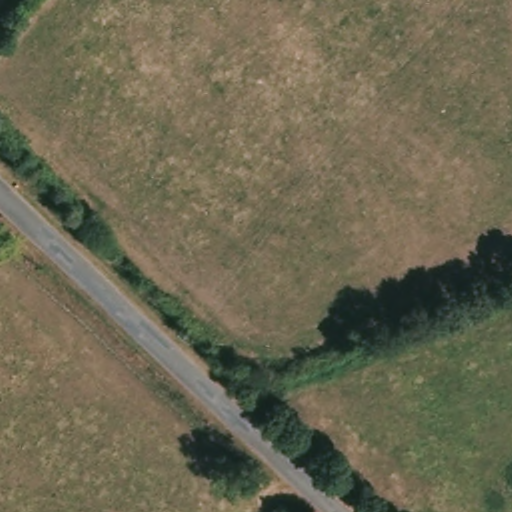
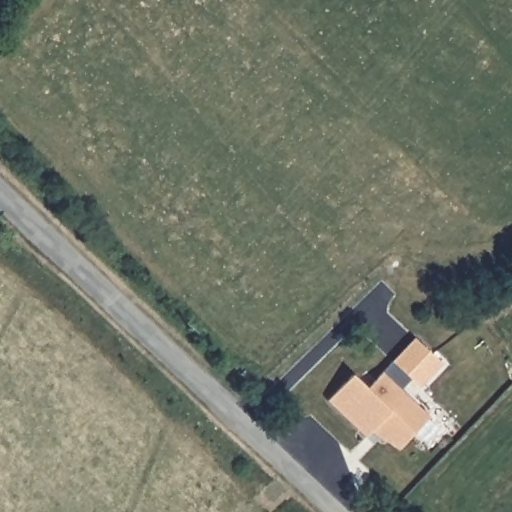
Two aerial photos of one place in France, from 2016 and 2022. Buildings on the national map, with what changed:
new [(367,436),(328,400),(353,374),(367,387),(415,337),(442,362),(420,386),(412,378),(401,389),(430,416),(400,448),(372,431),(367,436)]

